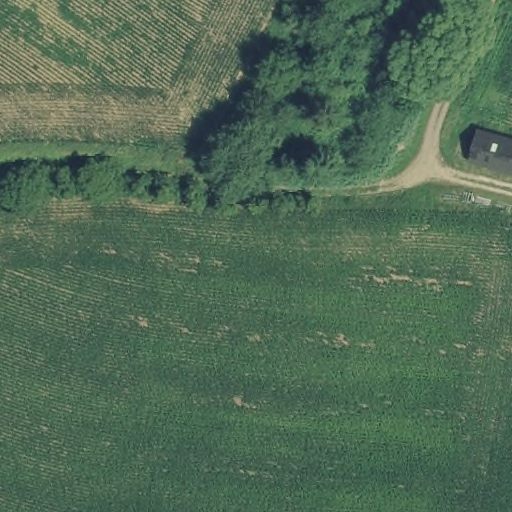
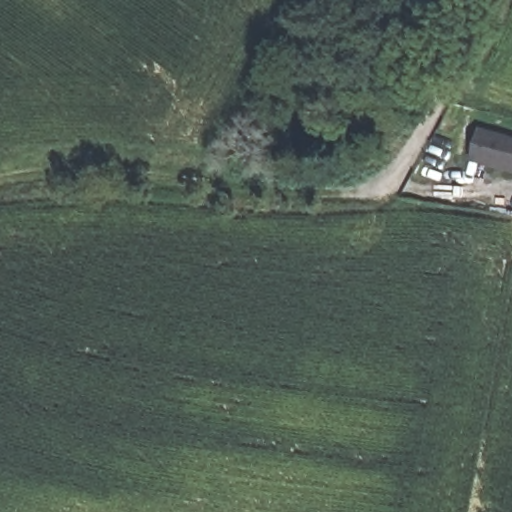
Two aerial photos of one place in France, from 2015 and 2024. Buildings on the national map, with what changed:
unchanged [(471,162),(476,125),(512,134),(512,173),(471,162)]

